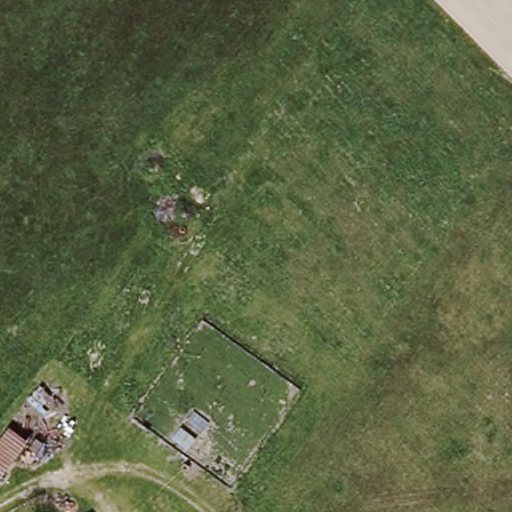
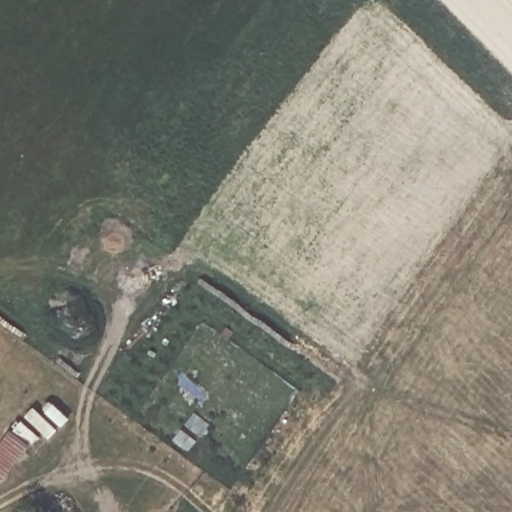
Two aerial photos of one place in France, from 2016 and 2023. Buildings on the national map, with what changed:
unchanged [(27,444),(0,483),(0,440),(8,428),(27,444)]

